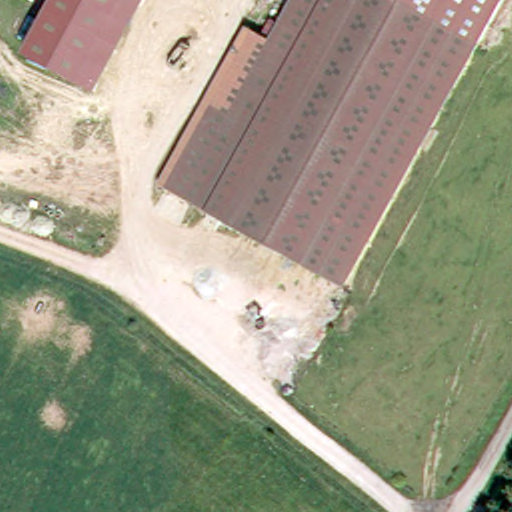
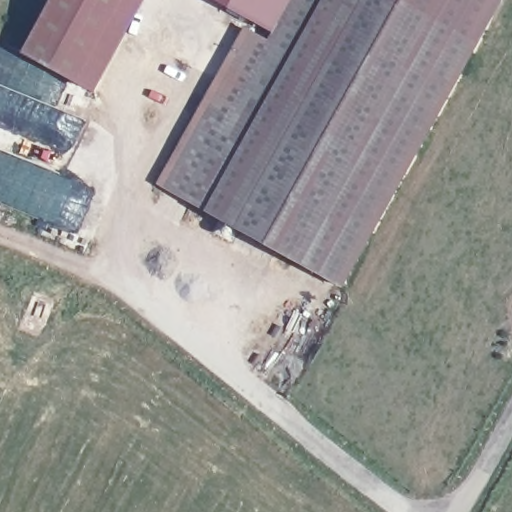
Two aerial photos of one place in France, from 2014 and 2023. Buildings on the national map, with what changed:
unchanged [(26,55),(56,0),(126,0),(79,85),(26,55)]
unchanged [(96,94),(79,85),(126,0),(148,0),(96,94)]
unchanged [(247,26),(271,39),(295,53),(323,0),(405,0),(480,42),(346,285),(208,207),(261,115),(212,88),(247,26)]
new [(275,31),(222,0),(292,0),(275,31)]
unchanged [(271,39),(292,0),(323,0),(295,53),(271,39)]
unchanged [(480,42),(405,0),(502,0),(480,42)]
unchanged [(208,207),(160,181),(212,88),(261,115),(208,207)]

